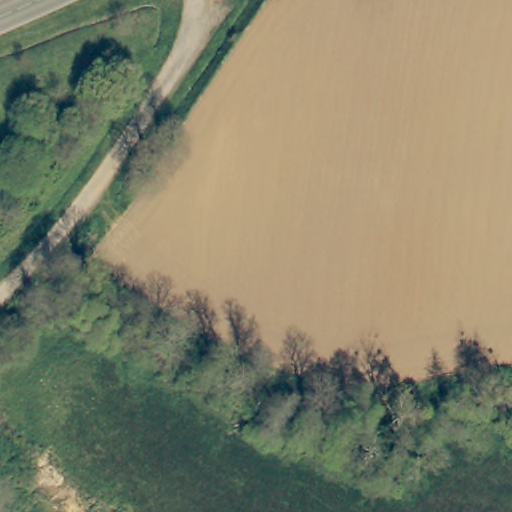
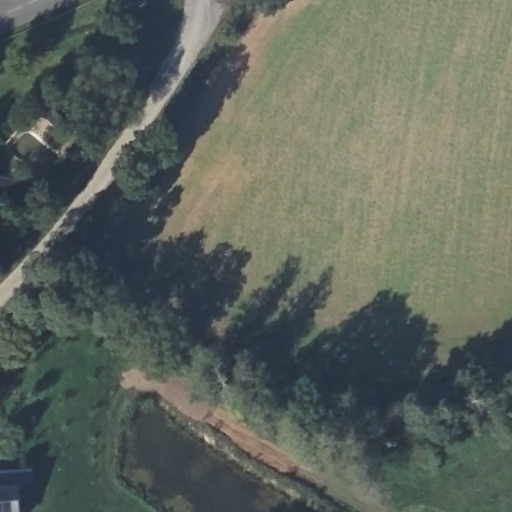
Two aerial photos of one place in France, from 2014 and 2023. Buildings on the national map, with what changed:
new [(36,483),(16,485),(18,512),(0,512),(0,472),(34,470),(36,483)]

